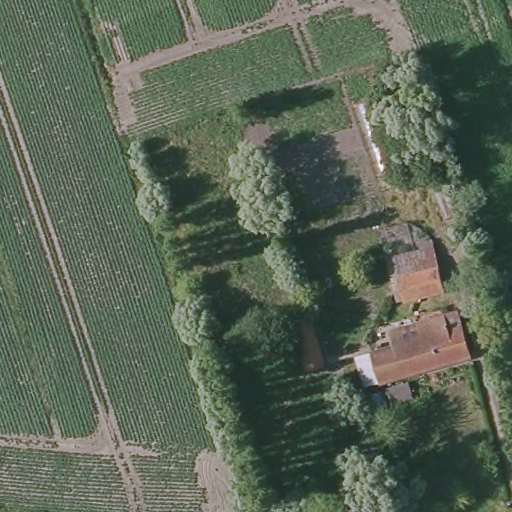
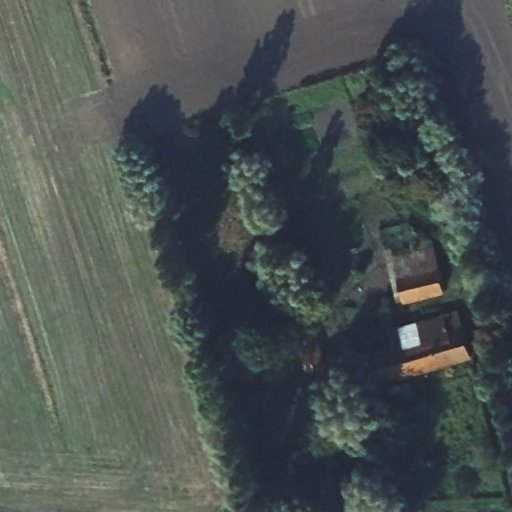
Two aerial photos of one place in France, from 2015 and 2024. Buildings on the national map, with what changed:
unchanged [(443,288),(406,300),(405,292),(400,294),(391,261),(396,260),(395,255),(431,245),(443,288)]
unchanged [(361,356),(409,343),(407,335),(424,330),(424,320),(457,310),(460,324),(465,323),(472,355),(368,385),(361,356)]
unchanged [(312,317),(325,367),(308,371),(295,321),(312,317)]
unchanged [(420,395),(396,400),(392,386),(415,380),(420,395)]

